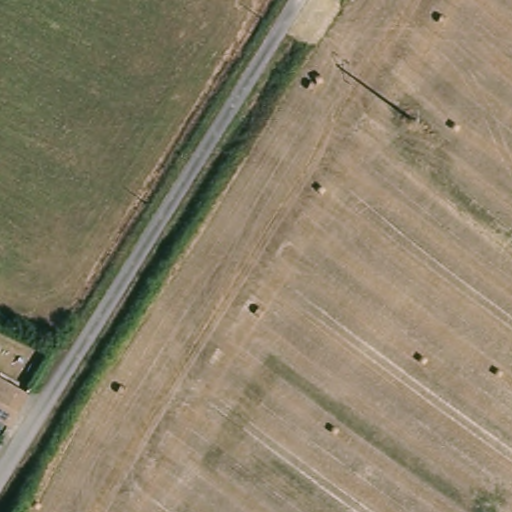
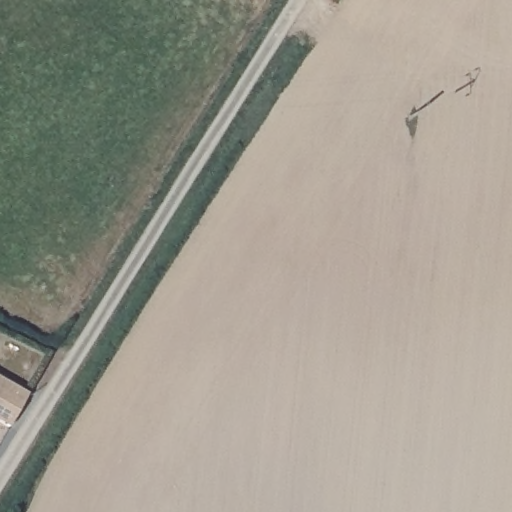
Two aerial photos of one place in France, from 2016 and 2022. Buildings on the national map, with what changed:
unchanged [(28,395),(8,427),(0,422),(0,379),(28,395)]

